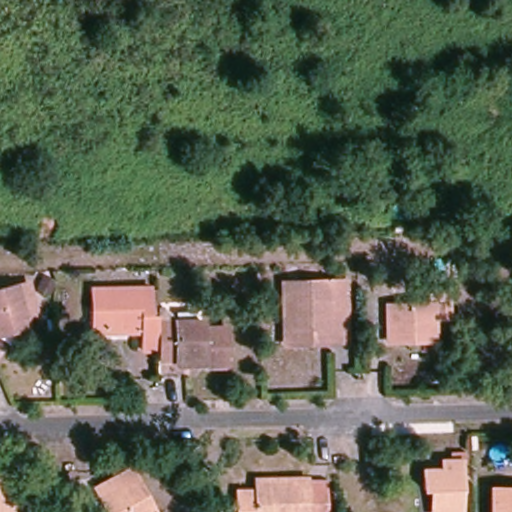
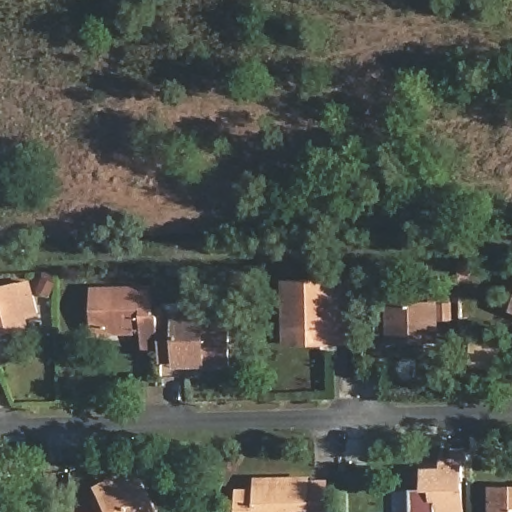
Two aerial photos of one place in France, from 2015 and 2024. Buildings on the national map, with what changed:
unchanged [(5,332),(0,333),(0,288),(29,279),(39,312),(25,316),(29,325),(5,332)]
unchanged [(282,330),(282,281),(341,281),(342,342),(321,342),(282,343),(282,330)]
unchanged [(159,353),(141,353),(141,335),(104,335),(93,335),(93,292),(100,292),(150,292),(150,293),(158,293),(158,327),(159,353)]
unchanged [(392,342),(392,332),(392,307),(437,306),(438,331),(438,341),(392,342)]
unchanged [(204,327),(204,335),(227,334),(227,371),(202,371),(202,364),(159,365),(159,353),(158,327),(204,327)]
unchanged [(4,465),(6,512),(0,512),(0,465),(4,465)]
unchanged [(437,495),(426,495),(426,476),(445,476),(445,467),(463,467),(464,512),(438,512),(437,495)]
unchanged [(160,512),(104,512),(112,507),(106,496),(101,487),(136,468),(141,477),(160,512)]
unchanged [(333,512),(247,512),(247,494),(266,495),(266,486),(288,486),(316,486),(316,488),(333,488),(333,512)]
unchanged [(495,490),(512,490),(512,512),(495,512),(495,490)]

